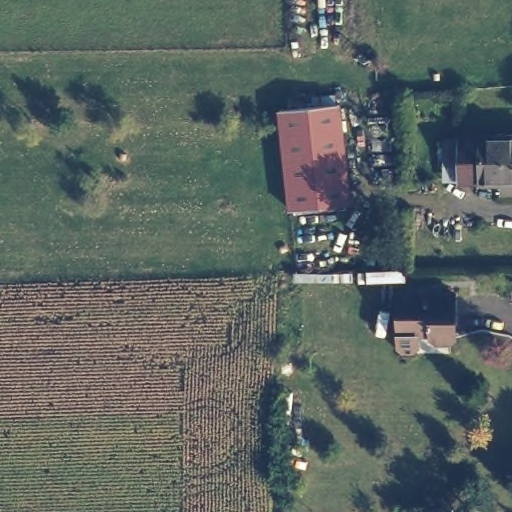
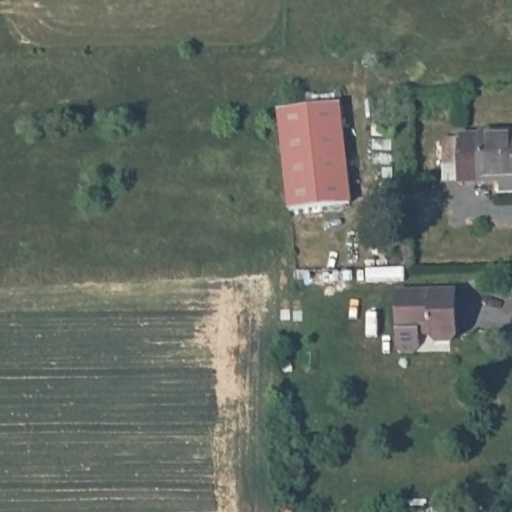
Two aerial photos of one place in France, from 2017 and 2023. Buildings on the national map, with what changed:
unchanged [(354,197),(295,204),(284,102),(345,97),(354,197)]
unchanged [(500,201),(498,184),(460,185),(460,176),(446,176),(446,141),(512,140),(512,201),(500,201)]
unchanged [(440,304),(439,300),(466,300),(465,350),(444,350),(444,341),(409,341),(409,305),(440,304)]

